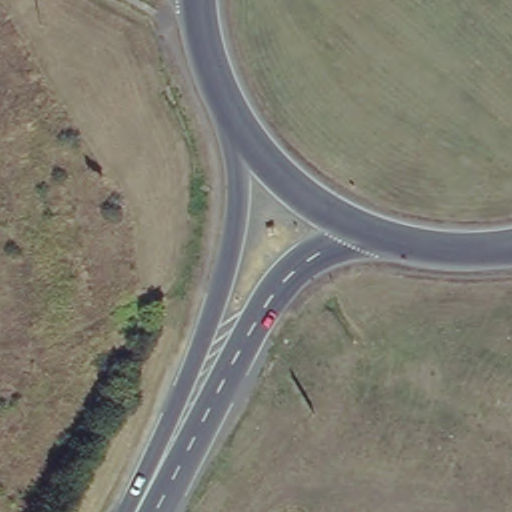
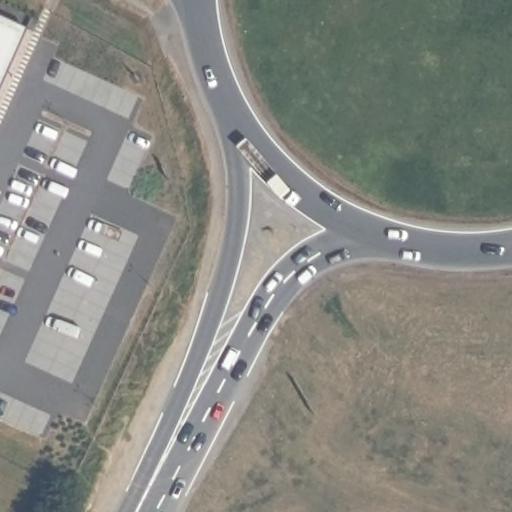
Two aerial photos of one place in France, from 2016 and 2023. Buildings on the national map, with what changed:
new [(0,93),(0,13),(30,27),(0,93)]

